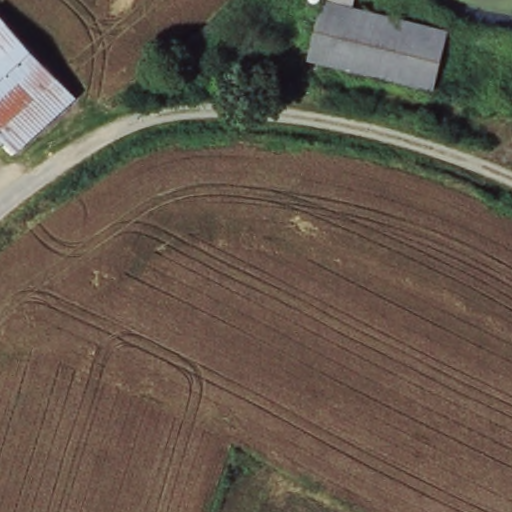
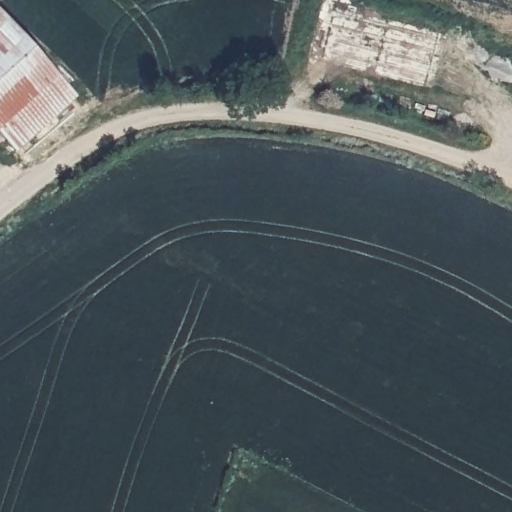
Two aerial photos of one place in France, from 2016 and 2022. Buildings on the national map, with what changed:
demolished [(446,32),(425,96),(300,55),(317,0),(348,0),(348,1),(446,32)]
unchanged [(15,145),(0,130),(0,24),(69,94),(15,145)]

